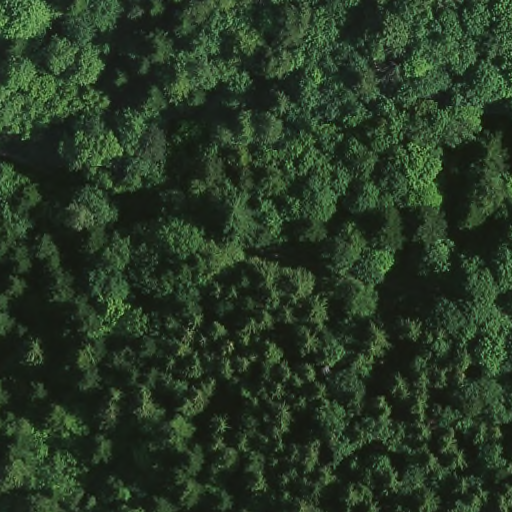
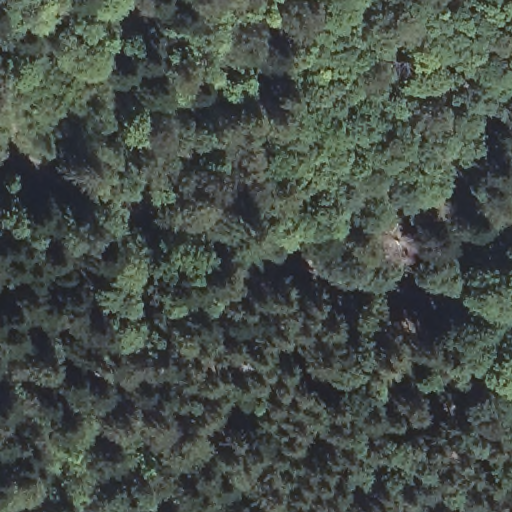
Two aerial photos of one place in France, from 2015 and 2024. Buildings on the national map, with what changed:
[]

